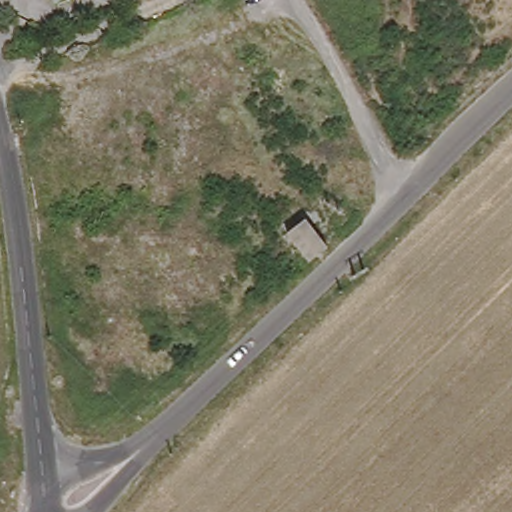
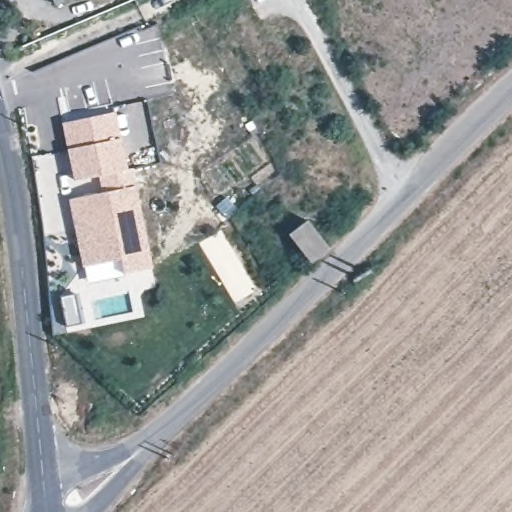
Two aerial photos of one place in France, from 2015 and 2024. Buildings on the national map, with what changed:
unchanged [(60,3),(59,0),(70,0),(60,3)]
new [(115,110),(127,168),(133,167),(136,183),(100,190),(96,176),(73,180),(60,122),(115,110)]
new [(100,192),(100,190),(136,183),(153,268),(123,274),(124,275),(88,283),(84,266),(82,266),(68,199),(100,192)]
unchanged [(329,247),(309,262),(286,233),(306,218),(329,247)]

